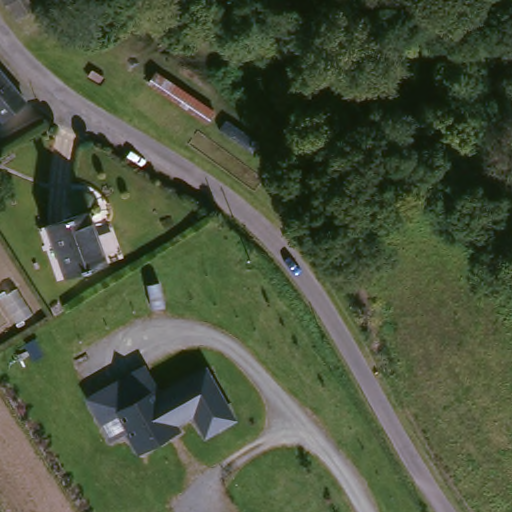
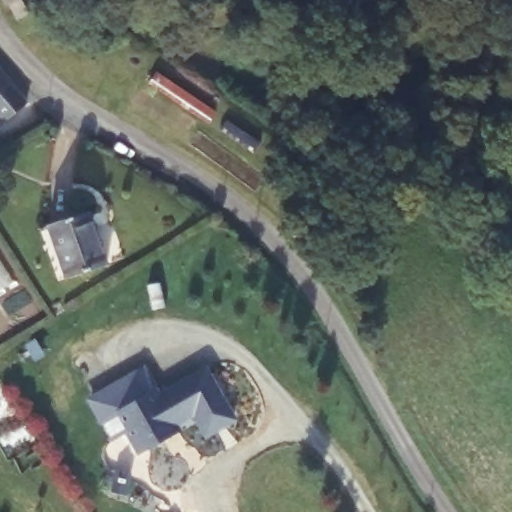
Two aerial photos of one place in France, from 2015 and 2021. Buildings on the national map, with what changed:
unchanged [(1,1),(1,0),(2,0),(1,1)]
unchanged [(13,12),(5,0),(33,0),(13,12)]
unchanged [(3,122),(0,118),(0,66),(26,102),(31,101),(3,122)]
unchanged [(66,275),(49,225),(89,212),(106,262),(66,275)]
unchanged [(159,389),(207,364),(237,420),(204,438),(193,418),(179,426),(182,431),(137,454),(124,435),(111,443),(86,398),(145,365),(159,389)]

